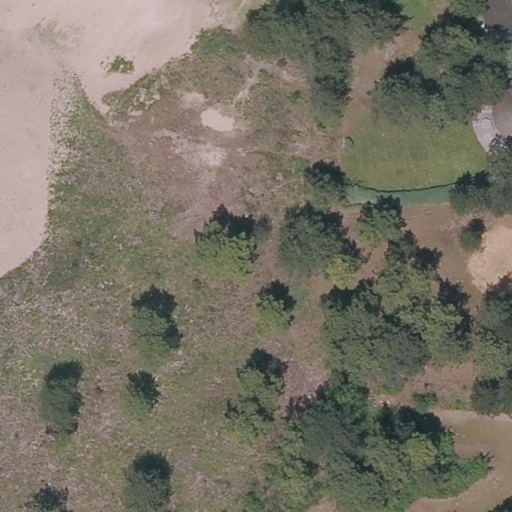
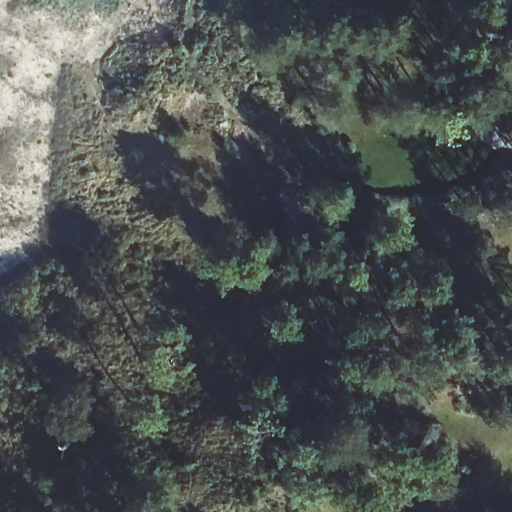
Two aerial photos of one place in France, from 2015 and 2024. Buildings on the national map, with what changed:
unchanged [(487,0),(512,0),(512,45),(490,39),(490,35),(487,0)]
unchanged [(493,130),(489,108),(489,107),(495,95),(498,90),(500,87),(508,82),(512,80),(512,141),(493,130)]

